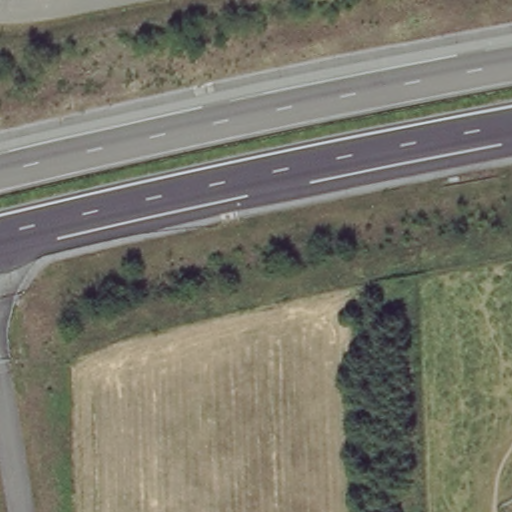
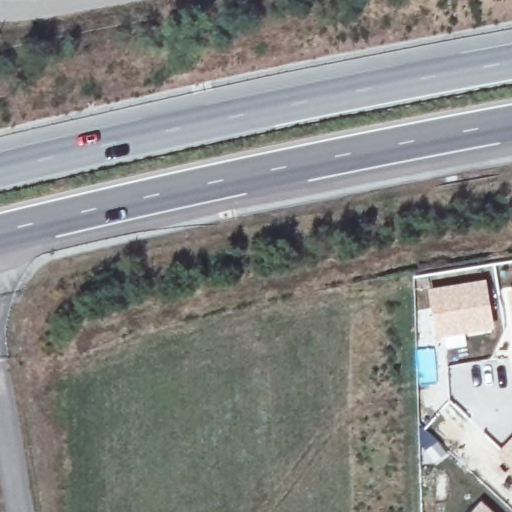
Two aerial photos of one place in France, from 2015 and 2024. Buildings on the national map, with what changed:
new [(487,278),(495,330),(435,339),(428,288),(487,278)]
new [(507,291),(512,290),(512,323),(507,291)]
new [(424,428),(449,454),(434,464),(422,465),(420,431),(424,428)]
new [(496,452),(512,435),(512,466),(496,452)]
new [(483,508),(488,512),(479,512),(483,508)]

